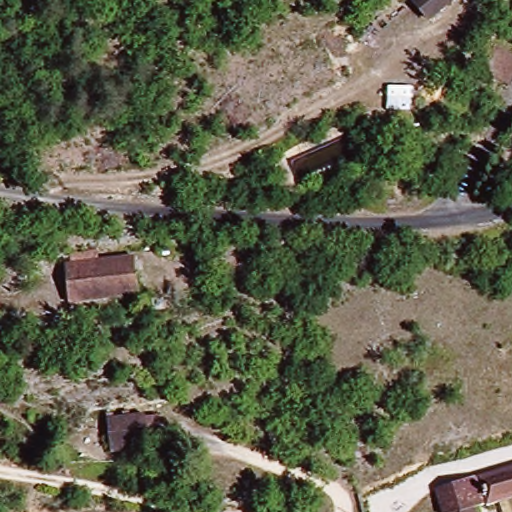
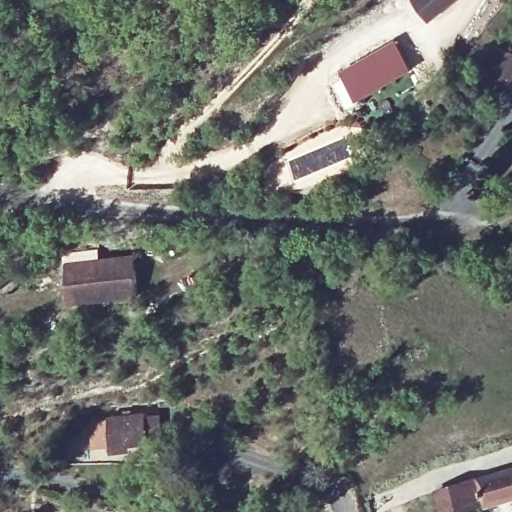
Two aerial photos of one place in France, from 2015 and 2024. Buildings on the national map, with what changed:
unchanged [(423,6),(426,0),(457,0),(447,19),(423,6)]
new [(357,102),(340,72),(396,41),(413,71),(357,102)]
unchanged [(110,262),(140,260),(143,297),(77,307),(71,263),(107,259),(110,262)]
unchanged [(155,426),(145,451),(112,440),(122,414),(155,426)]
unchanged [(440,497),(512,467),(512,499),(485,512),(435,512),(435,510),(443,507),(440,497)]

